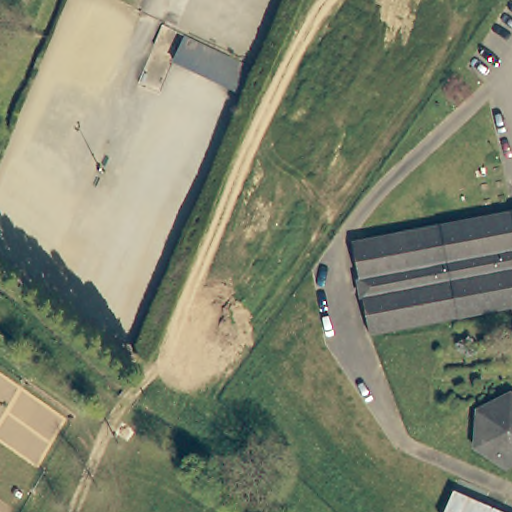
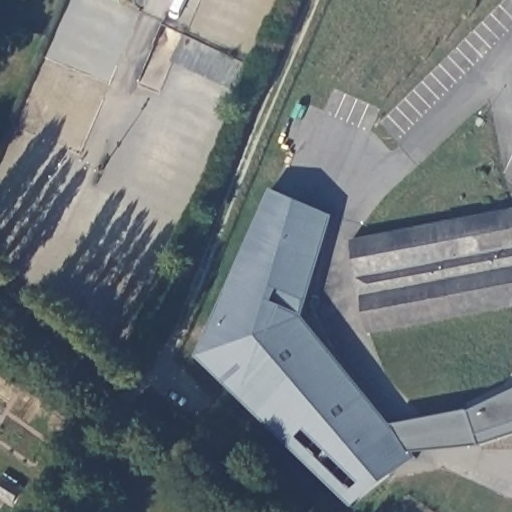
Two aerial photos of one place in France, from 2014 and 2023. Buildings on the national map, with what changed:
unchanged [(184,36),(256,69),(245,94),(172,61),(184,36)]
new [(305,317),(393,427),(468,413),(512,392),(512,437),(485,447),(415,453),(418,459),(354,509),(200,358),(271,190),(334,217),(305,317)]
unchanged [(353,242),(512,211),(512,296),(510,297),(371,335),(363,297),(360,281),(353,242)]
demolished [(504,466),(475,448),(477,408),(508,393),(512,395),(512,462),(504,466)]

